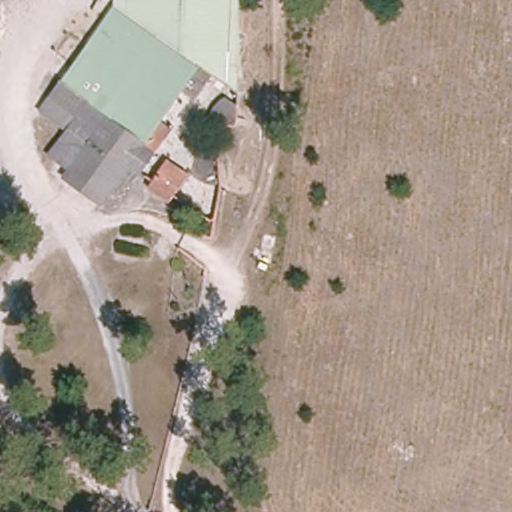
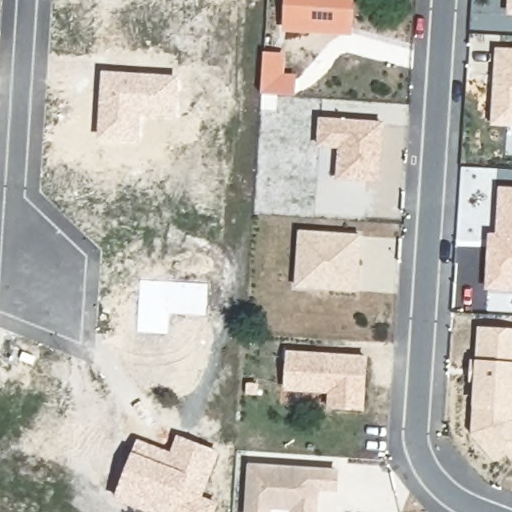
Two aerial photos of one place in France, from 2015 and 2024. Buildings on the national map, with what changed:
demolished [(129,0),(237,0),(234,97),(213,78),(204,71),(184,97),(163,126),(141,154),(153,162),(136,184),(128,177),(118,169),(104,185),(99,191),(71,172),(51,155),(72,125),(52,107),(129,1),(129,0)]
new [(287,29),(287,0),(357,0),(356,33),(287,29)]
new [(511,15),(512,0),(512,15),(511,15)]
new [(499,104),(502,51),(512,52),(512,104),(499,104)]
new [(284,55),(282,75),(296,76),(294,95),(262,92),(265,54),(284,55)]
new [(182,76),(179,118),(141,117),(140,143),(98,140),(102,71),(182,76)]
new [(498,124),(499,104),(512,104),(512,124),(498,124)]
new [(378,179),(339,176),(340,145),(319,144),(321,117),(382,121),(381,148),(380,155),(378,179)]
demolished [(148,195),(166,160),(189,172),(169,207),(148,195)]
new [(497,234),(499,186),(512,187),(512,293),(486,290),(489,233),(497,234)]
new [(302,231),(362,235),(358,290),(320,287),(298,285),(299,270),(302,231)]
new [(209,283),(207,315),(169,313),(168,335),(136,332),(140,280),(209,283)]
new [(504,442),(494,452),(477,434),(482,346),(484,329),(512,331),(512,451),(504,442)]
new [(292,352),(369,357),(366,409),(333,407),(334,391),(289,388),(292,352)]
new [(482,362),(481,380),(474,380),(476,362),(482,362)]
new [(170,451),(177,435),(221,453),(204,496),(219,503),(216,512),(148,512),(115,500),(133,452),(138,439),(170,451)]
new [(254,465),(339,470),(339,486),(319,485),(318,512),(297,512),(297,506),(273,504),(272,512),(251,512),(254,465)]

